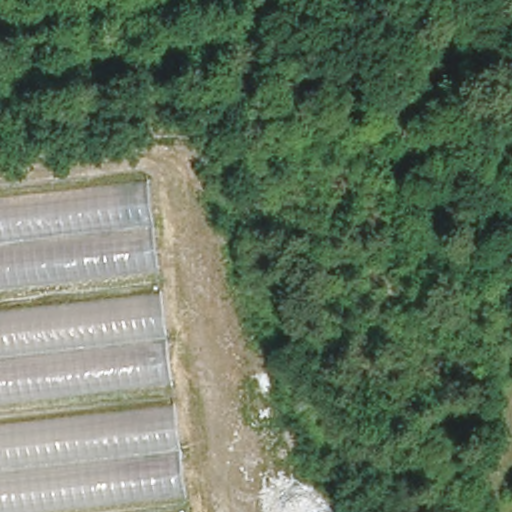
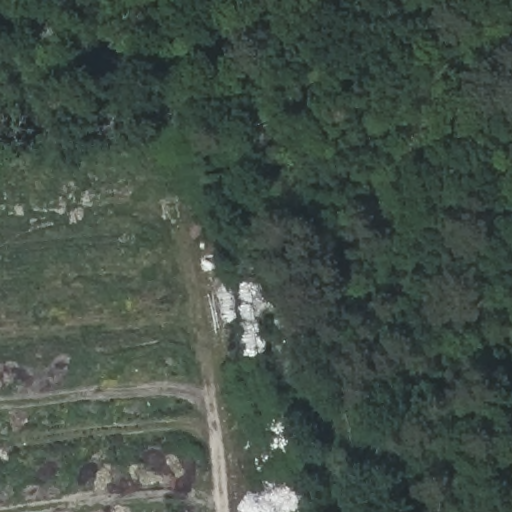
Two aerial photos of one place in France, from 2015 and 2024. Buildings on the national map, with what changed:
demolished [(188,512),(0,512),(0,199),(152,181),(188,512)]

